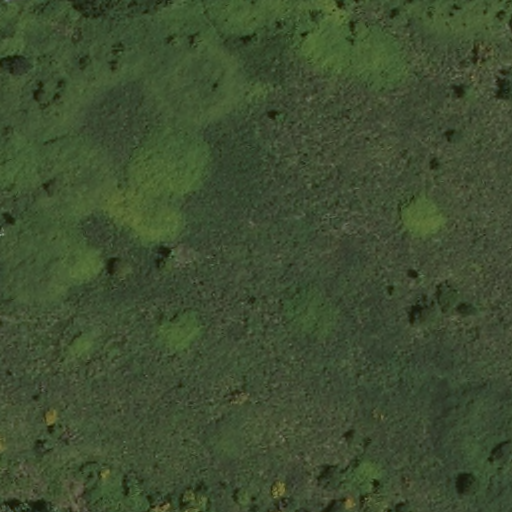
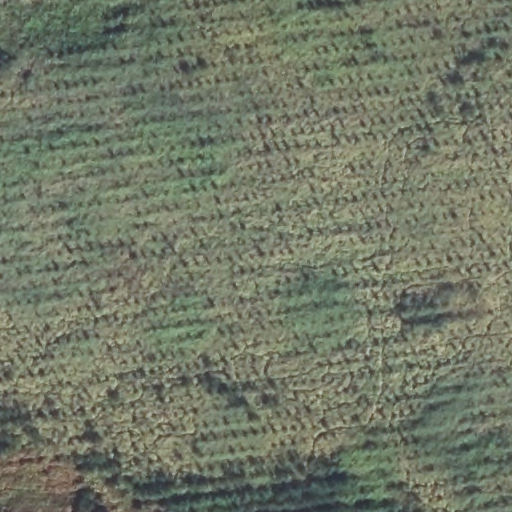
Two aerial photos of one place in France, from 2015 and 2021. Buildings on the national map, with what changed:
unchanged [(14,0),(0,3),(0,0),(14,0)]

